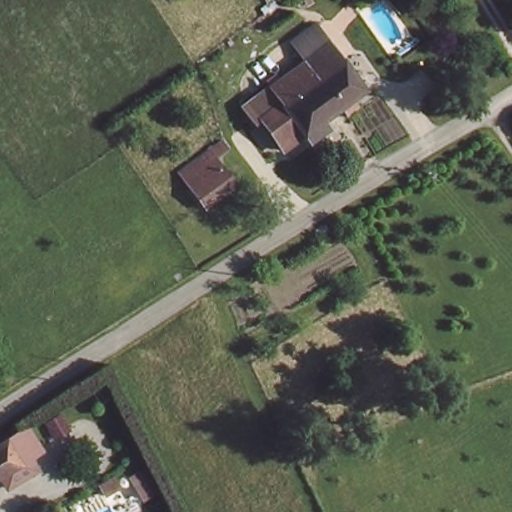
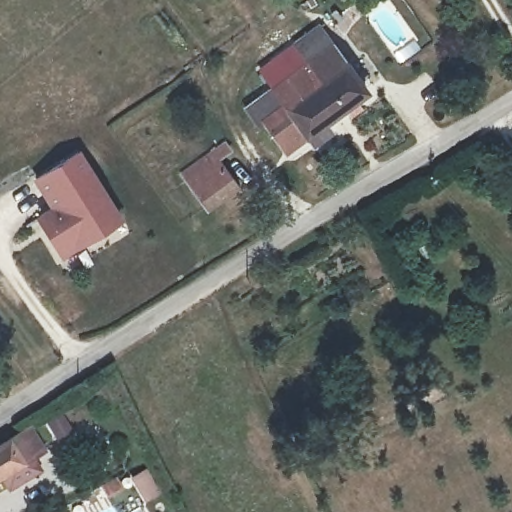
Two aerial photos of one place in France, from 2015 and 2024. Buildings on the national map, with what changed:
unchanged [(259,72),(318,29),(330,44),(272,89),(259,72)]
unchanged [(330,44),(365,85),(283,143),(251,105),(272,89),(330,44)]
new [(49,206),(31,179),(78,149),(122,219),(60,257),(34,216),(49,206)]
unchanged [(234,184),(207,206),(188,180),(216,157),(234,184)]
new [(28,425),(44,452),(33,459),(41,471),(7,491),(0,482),(0,440),(28,425)]
demolished [(0,472),(0,446),(13,463),(0,472)]

